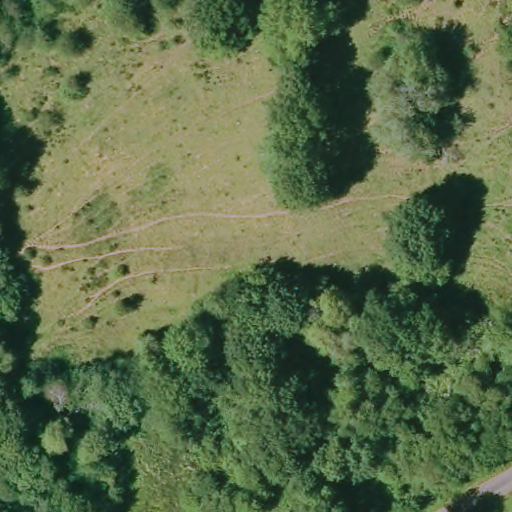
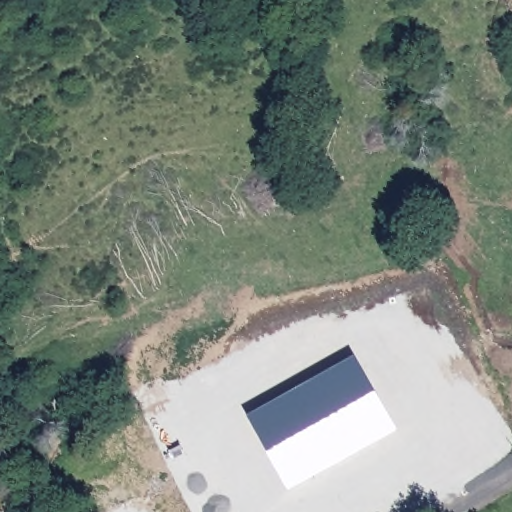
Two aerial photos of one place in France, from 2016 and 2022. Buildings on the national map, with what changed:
new [(396,432),(290,493),(246,408),(356,354),(396,432)]

